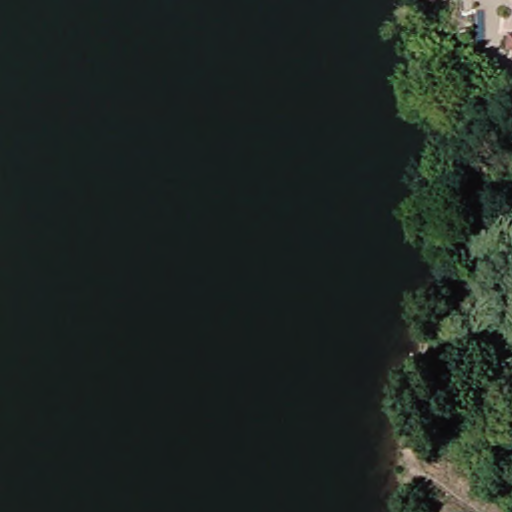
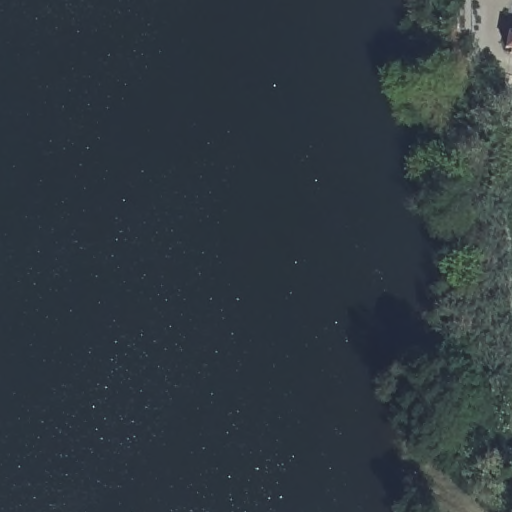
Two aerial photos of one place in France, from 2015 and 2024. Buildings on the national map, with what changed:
unchanged [(512,32),(512,49),(510,48),(512,32)]

